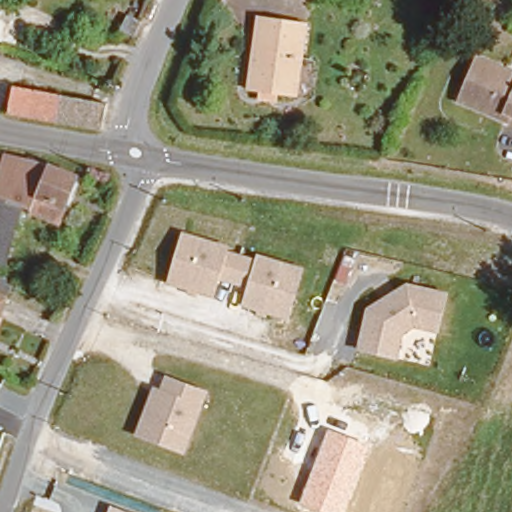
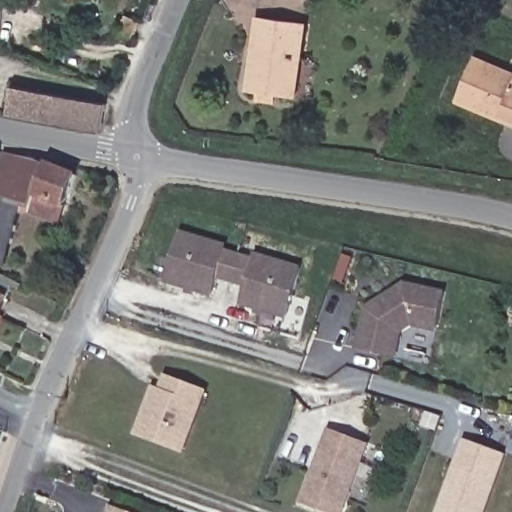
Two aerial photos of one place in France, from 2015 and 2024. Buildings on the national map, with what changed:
unchanged [(304,2),(299,0),(305,0),(304,2)]
unchanged [(260,16),(302,24),(291,95),(246,87),(260,16)]
unchanged [(455,95),(472,54),(512,71),(512,120),(501,114),(455,95)]
unchanged [(15,86),(102,102),(98,124),(11,109),(15,86)]
unchanged [(60,215),(22,201),(0,192),(0,146),(3,146),(8,148),(8,150),(77,175),(60,215)]
unchanged [(9,245),(0,242),(0,192),(22,201),(9,245)]
unchanged [(289,322),(242,307),(248,288),(220,280),(215,299),(167,284),(183,230),(231,245),(229,251),(256,259),(258,254),(305,268),(289,322)]
unchanged [(45,289),(37,285),(39,280),(48,284),(45,289)]
unchanged [(441,334),(414,328),(403,334),(398,360),(356,353),(366,308),(407,282),(450,292),(441,334)]
unchanged [(9,298),(0,316),(0,294),(9,298)]
unchanged [(187,454),(135,435),(152,386),(163,389),(168,374),(211,390),(187,454)]
unchanged [(321,512),(299,503),(327,429),(368,445),(345,512),(321,512)]
new [(508,455),(487,512),(436,512),(464,438),(508,455)]
unchanged [(123,512),(109,512),(111,507),(123,512)]

